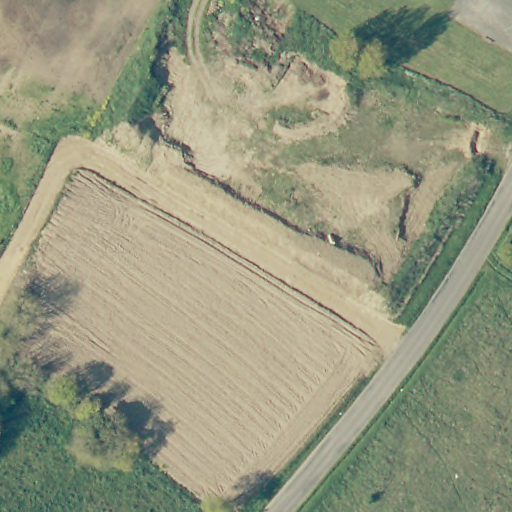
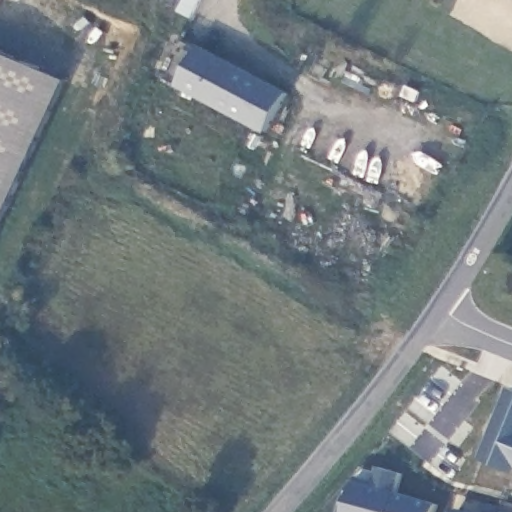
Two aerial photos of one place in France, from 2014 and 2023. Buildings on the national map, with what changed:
new [(264,133),(177,85),(160,76),(179,39),(196,47),(198,44),(287,92),(264,133)]
new [(0,50),(63,79),(0,218),(0,50)]

